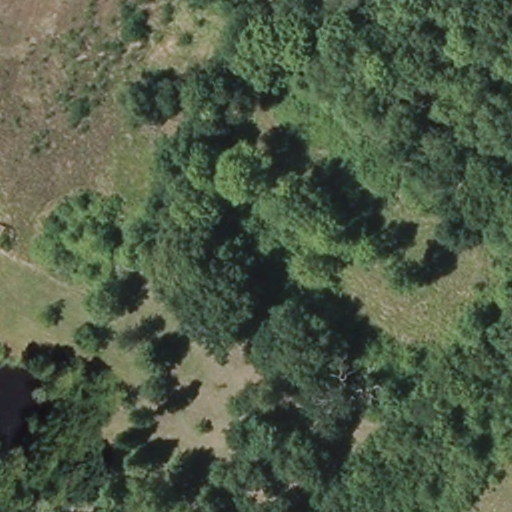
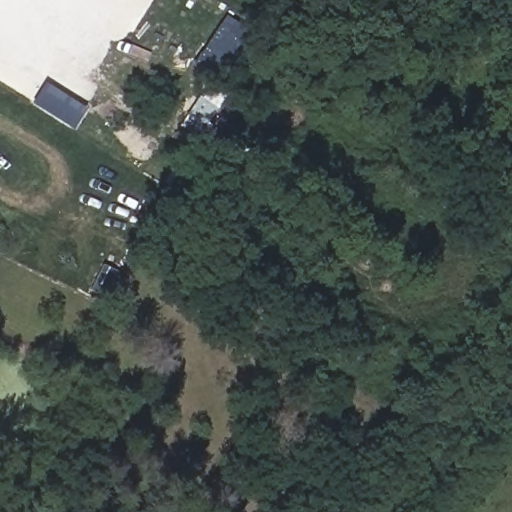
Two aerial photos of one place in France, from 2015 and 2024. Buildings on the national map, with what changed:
new [(75,130),(32,103),(45,83),(86,109),(75,130)]
unchanged [(180,235),(169,227),(181,209),(192,217),(180,235)]

